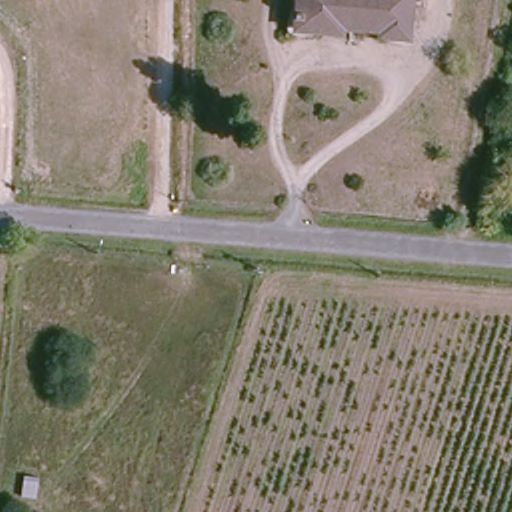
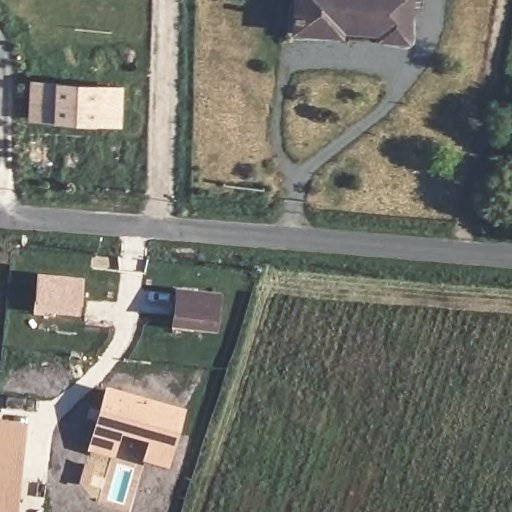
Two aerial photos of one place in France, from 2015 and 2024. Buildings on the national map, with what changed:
unchanged [(380,31),(342,28),(341,37),(296,36),(297,0),(408,0),(405,45),(381,43),(380,31)]
new [(29,79),(116,85),(114,122),(26,116),(29,79)]
new [(33,312),(36,275),(84,280),(80,316),(33,312)]
new [(221,293),(217,332),(171,327),(175,288),(221,293)]
new [(185,409),(169,471),(140,462),(147,445),(121,437),(114,460),(86,452),(105,387),(185,409)]
new [(27,423),(17,512),(0,512),(0,420),(27,423)]
unchanged [(23,496),(25,477),(39,478),(37,499),(23,496)]

